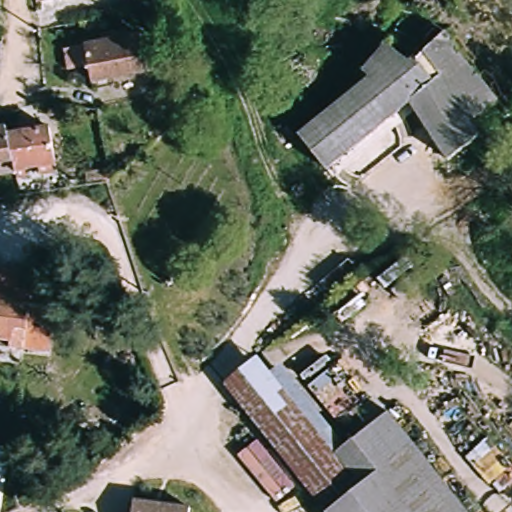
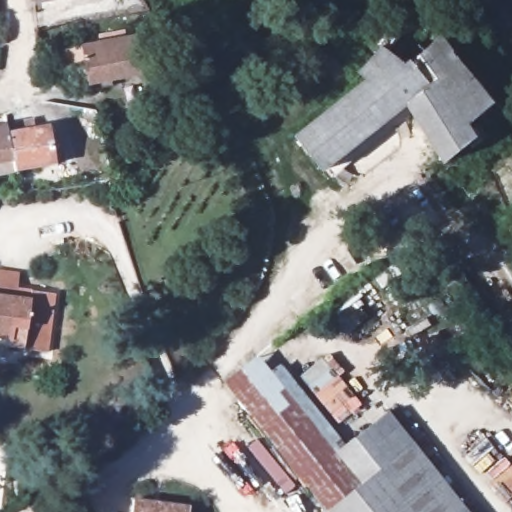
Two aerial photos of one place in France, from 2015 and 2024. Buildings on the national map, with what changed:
unchanged [(476,123),(485,135),(450,160),(409,107),(326,168),(300,132),(303,130),(317,119),(372,78),(365,67),(383,43),(395,28),(415,52),(417,56),(440,38),(501,103),(476,123)]
unchanged [(136,34),(143,71),(86,81),(80,45),(136,34)]
unchanged [(5,171),(5,163),(0,164),(0,127),(3,133),(46,127),(51,166),(5,171)]
unchanged [(36,296),(33,337),(0,335),(0,294),(36,296)]
unchanged [(265,441),(217,385),(251,354),(266,371),(275,363),(339,444),(383,410),(467,512),(325,512),(302,485),(265,441)]
unchanged [(482,389),(498,410),(485,420),(469,399),(482,389)]
unchanged [(240,457),(265,441),(302,485),(276,502),(240,457)]
unchanged [(127,512),(128,501),(184,505),(183,512),(127,512)]

